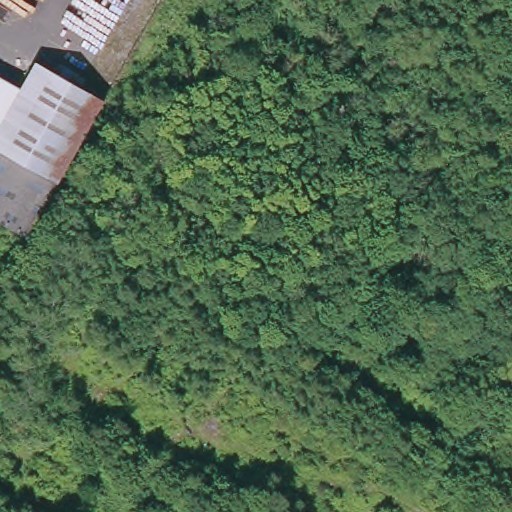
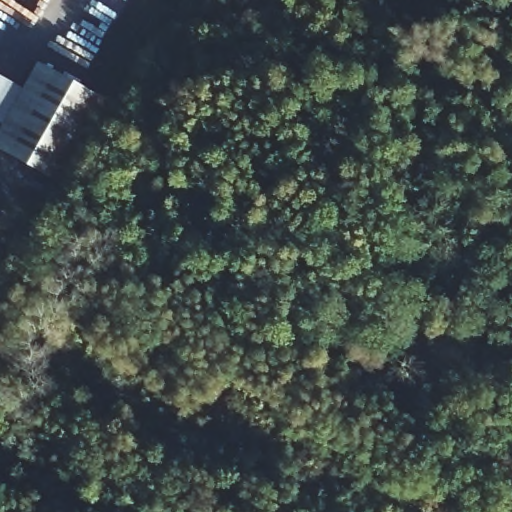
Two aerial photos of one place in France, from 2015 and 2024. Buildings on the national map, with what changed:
unchanged [(34,62),(102,100),(55,186),(28,237),(0,222),(0,124),(34,62)]
unchanged [(0,124),(0,123),(0,76),(21,87),(0,124)]

